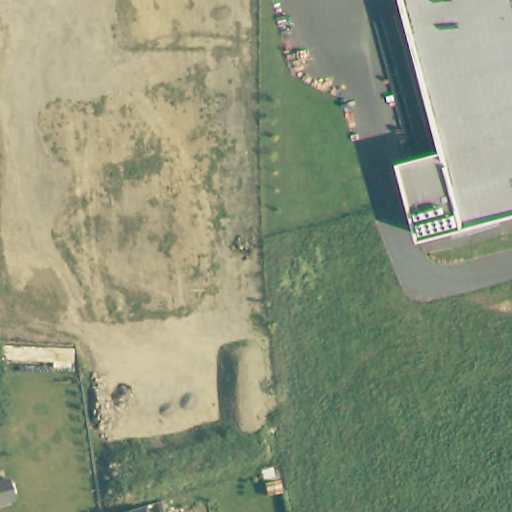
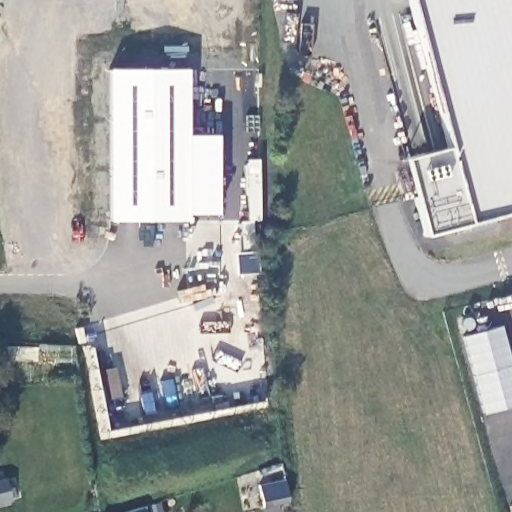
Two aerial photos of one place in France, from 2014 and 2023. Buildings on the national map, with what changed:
unchanged [(403,157),(446,146),(407,0),(512,0),(512,214),(424,237),(403,157)]
new [(192,220),(110,221),(110,70),(192,70),(192,220)]
new [(281,479),(285,501),(259,506),(255,483),(281,479)]
new [(11,482),(15,503),(0,506),(0,484),(11,482)]
unchanged [(143,506),(145,512),(121,512),(143,506)]

